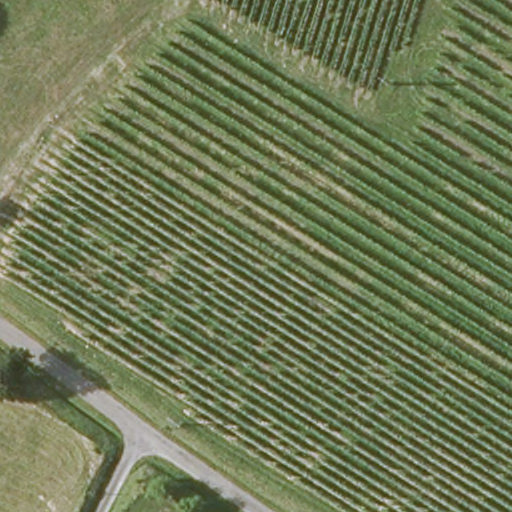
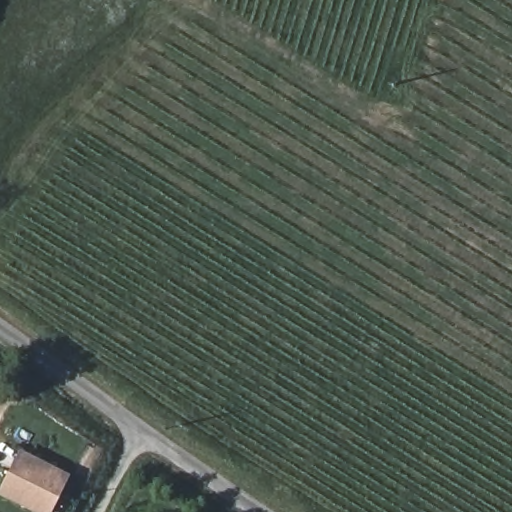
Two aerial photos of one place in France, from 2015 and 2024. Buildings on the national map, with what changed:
new [(0,490),(20,449),(70,474),(51,512),(35,512),(0,495),(0,490)]

